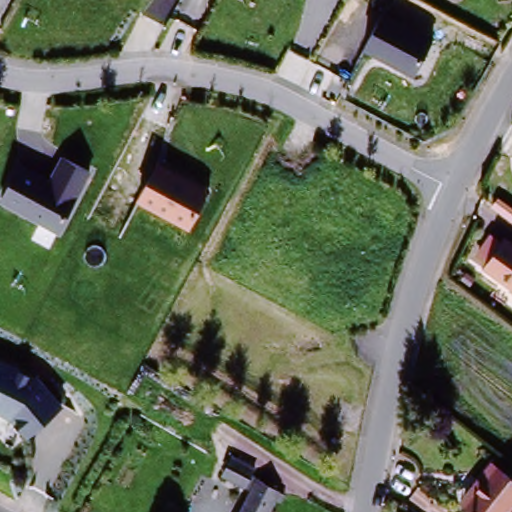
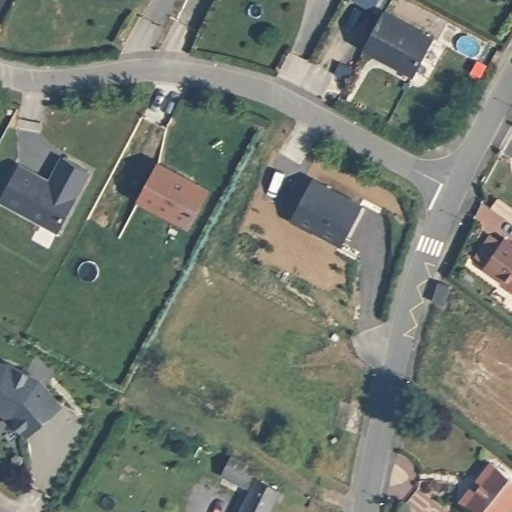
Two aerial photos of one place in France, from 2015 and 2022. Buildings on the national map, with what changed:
unchanged [(433,39),(413,76),(365,50),(384,13),(433,39)]
unchanged [(63,155),(92,173),(59,233),(0,200),(0,199),(20,162),(50,178),(63,155)]
unchanged [(212,191),(190,228),(137,200),(158,163),(212,191)]
new [(316,181),(365,206),(345,246),(316,231),(317,230),(310,227),(310,228),(295,220),(316,181)]
unchanged [(483,265),(505,237),(512,242),(512,288),(483,265)]
unchanged [(42,376),(65,405),(26,437),(12,420),(0,413),(0,362),(11,363),(42,376)]
unchanged [(252,488),(220,473),(226,454),(288,481),(272,512),(240,512),(252,488)]
unchanged [(493,468),(512,483),(512,507),(508,512),(473,512),(463,504),(493,468)]

